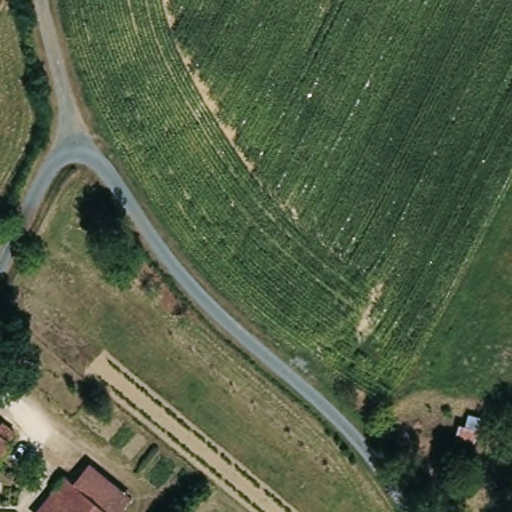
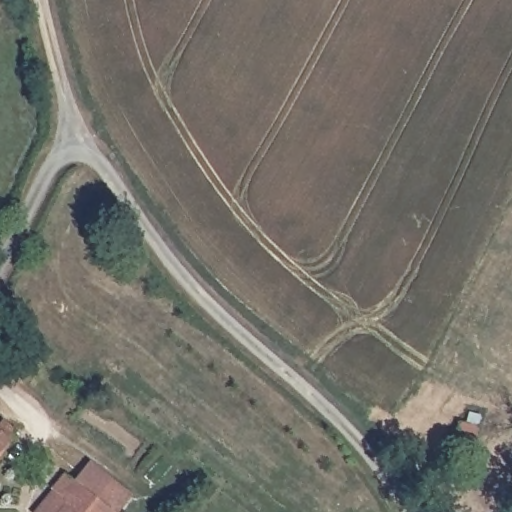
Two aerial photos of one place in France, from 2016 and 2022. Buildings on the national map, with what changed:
unchanged [(14,429),(5,438),(9,441),(0,452),(0,419),(14,429)]
unchanged [(84,486),(100,463),(141,492),(126,512),(122,512),(91,490),(84,486)]
unchanged [(72,478),(84,486),(91,490),(75,512),(48,512),(72,478)]
unchanged [(91,490),(122,512),(75,512),(91,490)]

